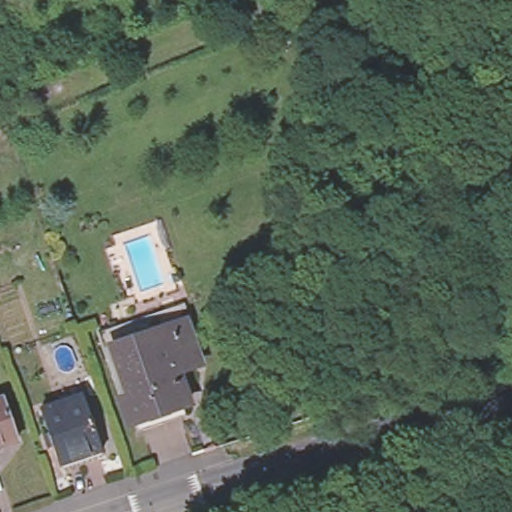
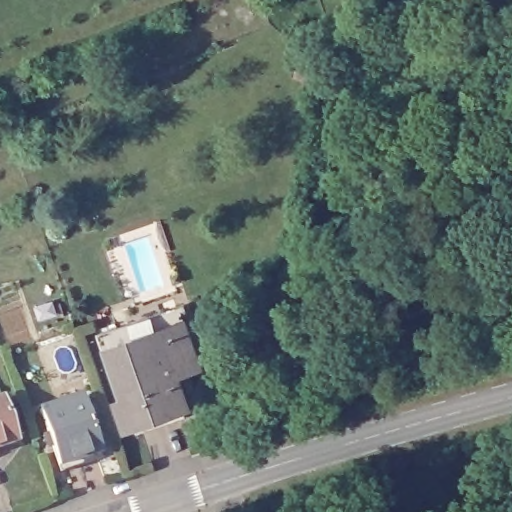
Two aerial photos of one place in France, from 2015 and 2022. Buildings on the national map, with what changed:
unchanged [(186,306),(192,322),(186,324),(202,371),(192,375),(197,392),(186,396),(189,406),(185,408),(188,418),(139,434),(136,425),(130,426),(99,336),(186,306)]
unchanged [(39,404),(80,390),(99,448),(58,462),(39,404)]
unchanged [(16,443),(0,448),(0,391),(16,443)]

